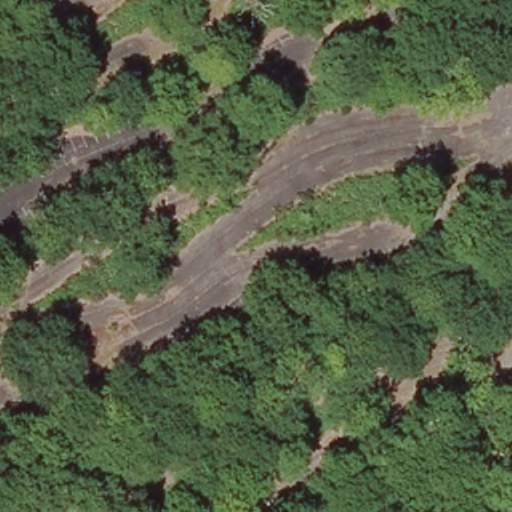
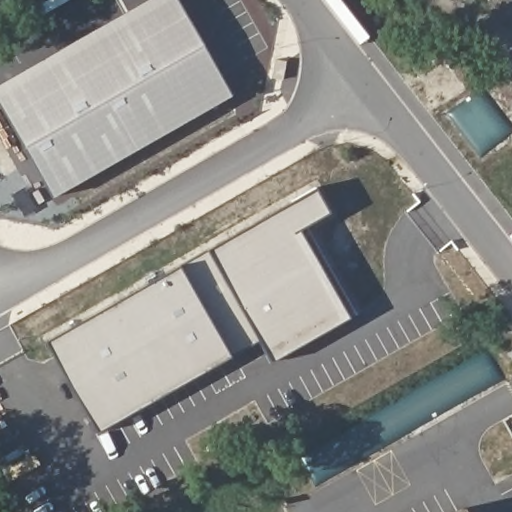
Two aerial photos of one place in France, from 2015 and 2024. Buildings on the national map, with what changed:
new [(150,0),(185,0),(241,101),(62,196),(1,86),(150,0)]
new [(322,185),(336,210),(307,225),(356,313),(280,356),(262,338),(103,430),(55,340),(322,185)]
new [(456,512),(470,503),(468,505),(473,512),(456,512)]

